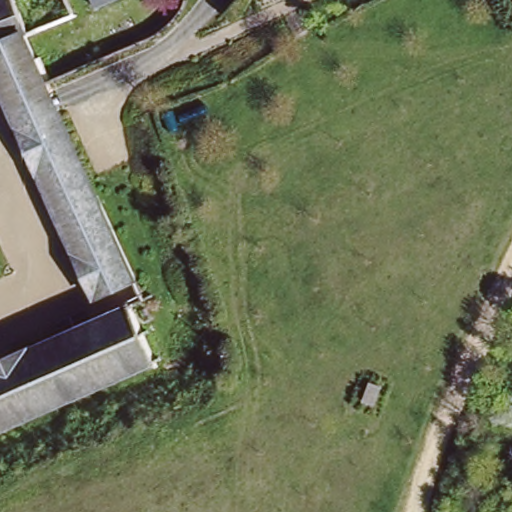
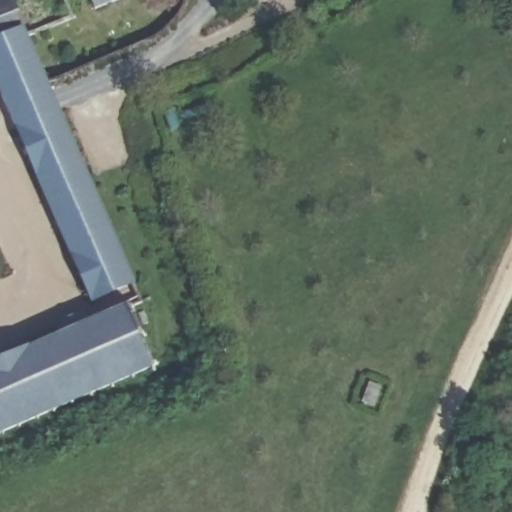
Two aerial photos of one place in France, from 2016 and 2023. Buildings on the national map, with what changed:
unchanged [(25,36),(0,47),(0,0),(8,0),(25,36)]
unchanged [(81,19),(73,0),(124,0),(81,19)]
unchanged [(25,36),(52,99),(58,112),(132,278),(91,297),(15,132),(8,119),(0,100),(0,47),(25,36)]
unchanged [(100,316),(125,305),(152,362),(0,433),(0,361),(100,316)]
unchanged [(389,408),(377,402),(386,385),(405,392),(402,401),(395,397),(389,408)]

